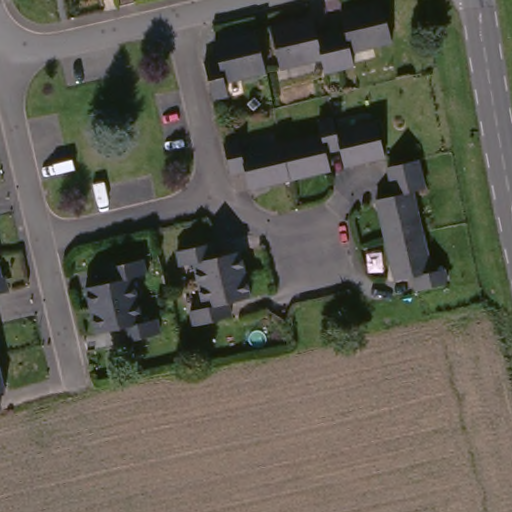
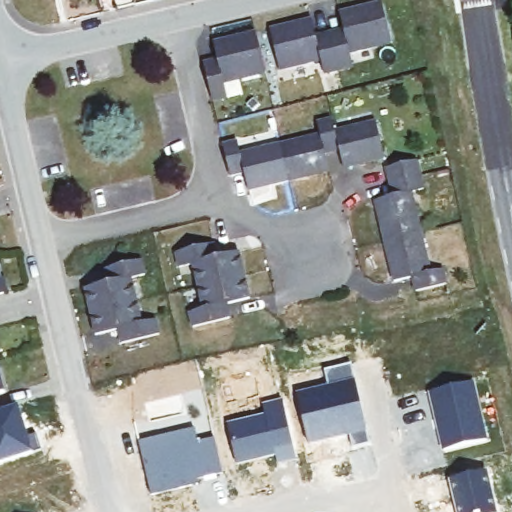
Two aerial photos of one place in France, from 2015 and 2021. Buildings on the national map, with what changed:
unchanged [(379,2),(388,43),(347,52),(350,66),(322,72),(319,59),(278,68),(267,28),(309,18),(313,34),(327,31),(341,27),(337,12),(379,2)]
unchanged [(226,82),(229,96),(214,98),(207,69),(205,61),(220,58),(219,54),(216,42),(257,32),(267,72),(226,82)]
unchanged [(250,191),(250,188),(247,175),(232,178),(225,148),(240,144),(243,157),(322,138),(319,126),(334,122),(337,135),(377,125),(385,161),(366,166),(345,171),(344,166),(341,153),(327,156),(331,169),(332,174),(312,178),(271,188),(251,193),(250,191)]
unchanged [(387,260),(378,220),(373,199),(376,198),(377,198),(386,196),(391,195),(385,167),(415,160),(421,189),(409,192),(428,272),(440,269),(443,284),(413,290),(410,276),(396,279),(392,280),(387,260)]
unchanged [(226,322),(196,329),(193,315),(206,311),(195,267),(182,270),(178,254),(208,247),(215,245),(218,260),(240,254),(252,301),(229,306),(233,320),(226,322)]
unchanged [(116,331),(94,337),(83,291),(106,286),(102,271),(110,270),(139,263),(143,278),(130,280),(141,325),(153,322),(156,337),(127,344),(120,346),(116,331)]
unchanged [(0,296),(0,269),(6,295),(0,296)]
new [(328,387),(325,370),(352,364),(370,444),(353,448),(349,433),(308,443),(297,394),(328,387)]
unchanged [(0,396),(0,367),(6,394),(0,396)]
new [(473,382),(487,440),(444,450),(431,392),(473,382)]
new [(266,416),(264,405),(283,401),(296,458),(278,462),(276,454),(237,463),(228,424),(266,416)]
unchanged [(0,414),(0,408),(1,414),(0,414)]
new [(195,429),(199,443),(215,439),(223,473),(197,479),(198,483),(151,494),(139,442),(195,429)]
new [(50,483),(36,486),(42,512),(0,512),(0,511),(0,476),(45,464),(50,483)]
new [(495,512),(458,512),(451,479),(486,471),(495,512)]

